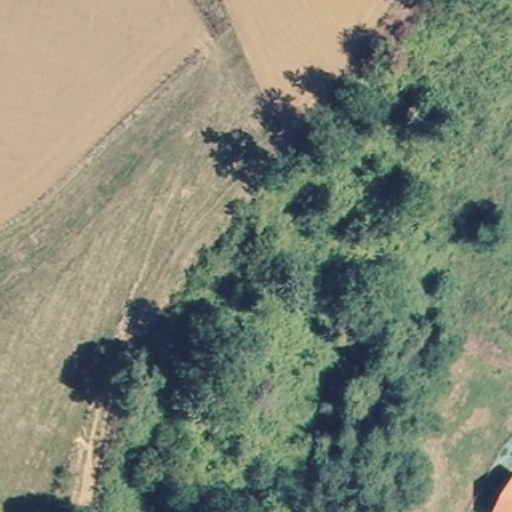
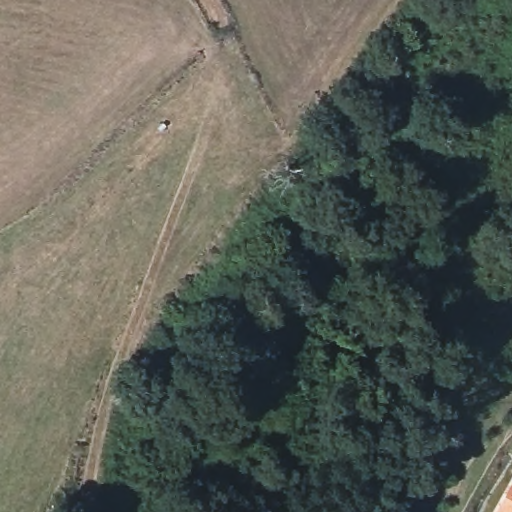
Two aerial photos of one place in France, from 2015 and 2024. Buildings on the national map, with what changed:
unchanged [(512,496),(512,512),(504,512),(501,510),(512,496)]

